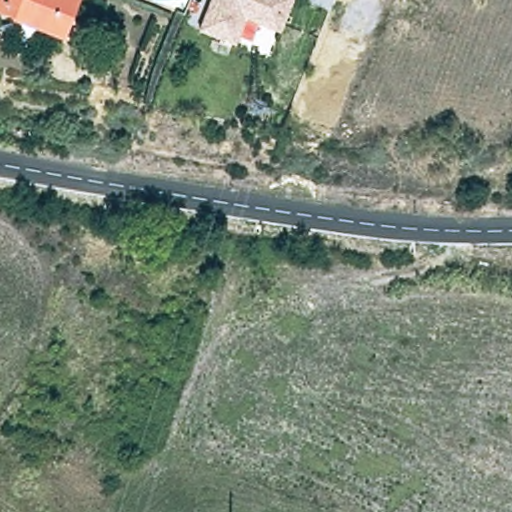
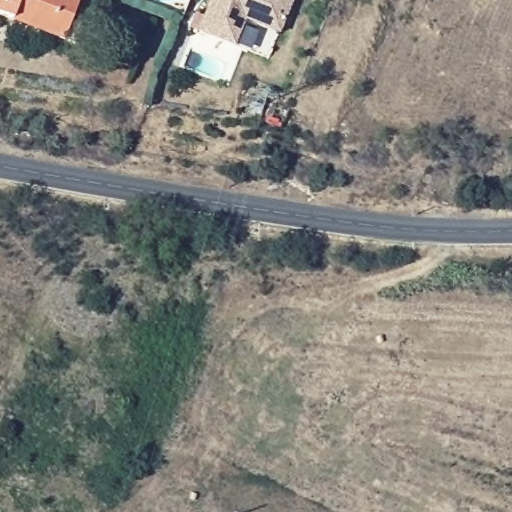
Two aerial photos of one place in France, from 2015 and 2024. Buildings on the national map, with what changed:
unchanged [(0,16),(0,0),(75,0),(59,39),(0,16)]
unchanged [(246,19),(234,45),(198,31),(210,0),(291,0),(282,24),(279,31),(261,24),(246,19)]

